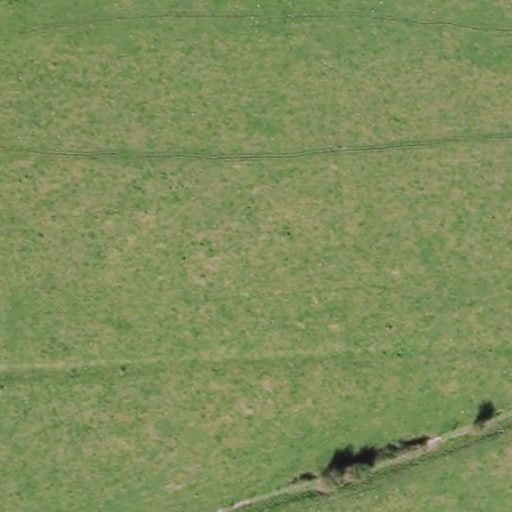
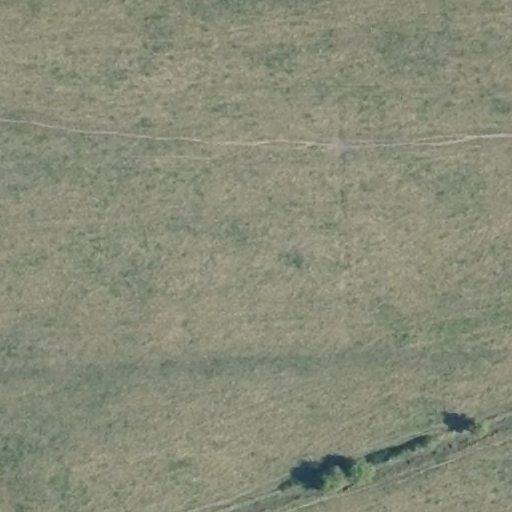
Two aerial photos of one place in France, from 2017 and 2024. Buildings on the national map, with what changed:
[]

